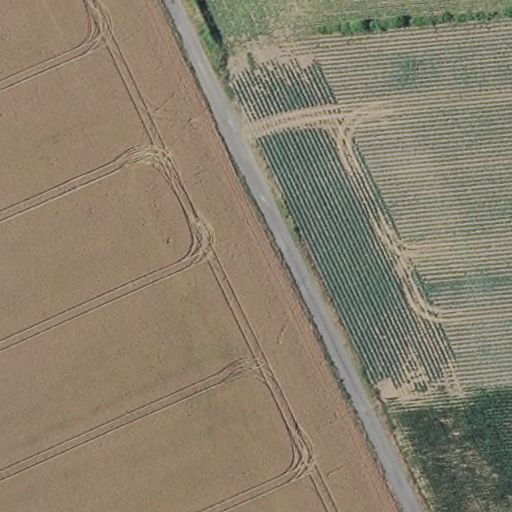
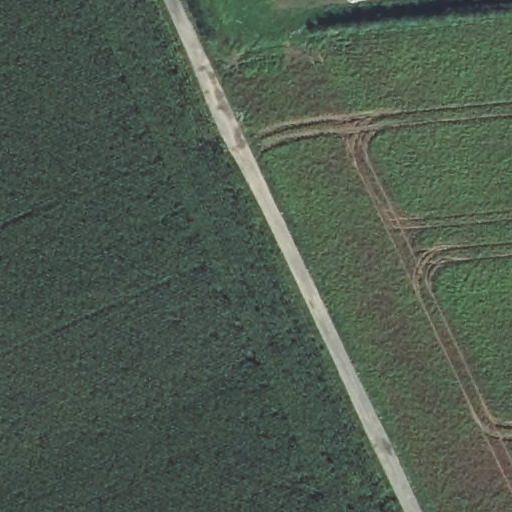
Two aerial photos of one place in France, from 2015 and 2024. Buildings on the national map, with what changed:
[]

